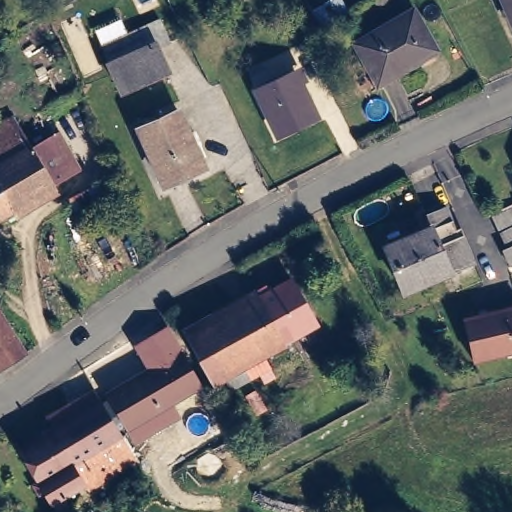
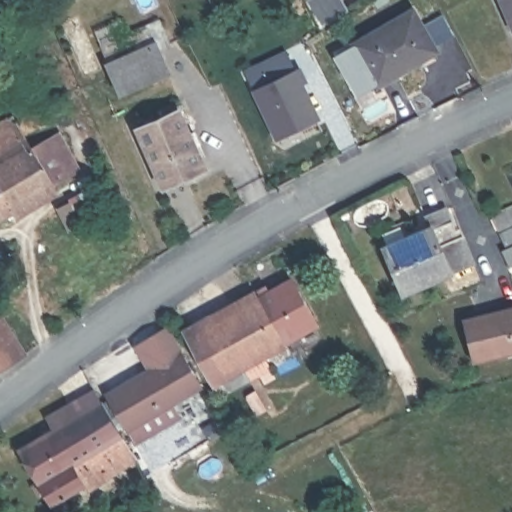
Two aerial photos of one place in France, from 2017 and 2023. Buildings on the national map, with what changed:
unchanged [(511,0),(512,0),(512,2),(511,0)]
unchanged [(409,10),(427,48),(372,79),(352,41),(409,10)]
unchanged [(161,17),(170,39),(158,45),(168,67),(122,89),(102,45),(161,17)]
unchanged [(308,82),(304,84),(320,118),(275,140),(252,91),(301,67),(308,82)]
unchanged [(195,179),(170,191),(145,134),(167,125),(163,116),(178,109),(183,117),(185,117),(198,144),(211,172),(195,179)]
unchanged [(30,150),(50,140),(70,177),(0,217),(0,139),(18,129),(30,150)]
unchanged [(107,182),(115,201),(85,216),(75,197),(107,182)]
unchanged [(436,227),(432,217),(451,207),(475,262),(410,290),(392,247),(436,227)]
unchanged [(512,207),(512,221),(499,227),(497,228),(492,217),(494,216),(512,207)]
unchanged [(512,226),(512,240),(505,243),(503,244),(498,232),(500,232),(512,226)]
unchanged [(507,246),(512,244),(512,261),(507,263),(505,258),(500,249),(507,246)]
unchanged [(316,323),(212,381),(188,337),(292,280),(316,323)]
unchanged [(482,351),(475,313),(512,305),(512,349),(485,356),(482,351)]
unchanged [(0,368),(0,310),(25,352),(0,368)]
unchanged [(185,353),(201,383),(125,428),(110,398),(185,353)]
unchanged [(52,502),(47,492),(40,495),(34,483),(40,481),(21,448),(29,443),(100,400),(137,461),(93,487),(87,482),(75,488),(82,499),(71,505),(59,512),(52,502)]

